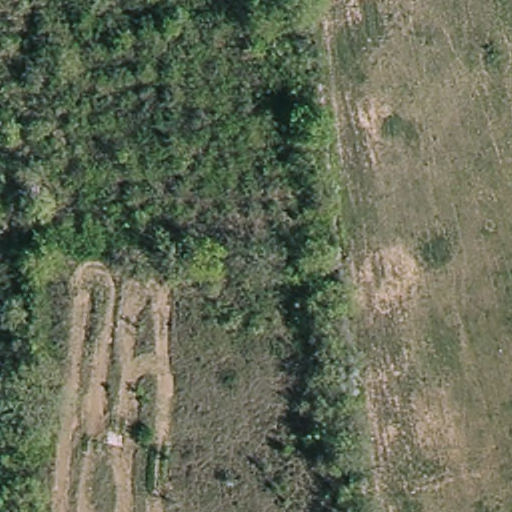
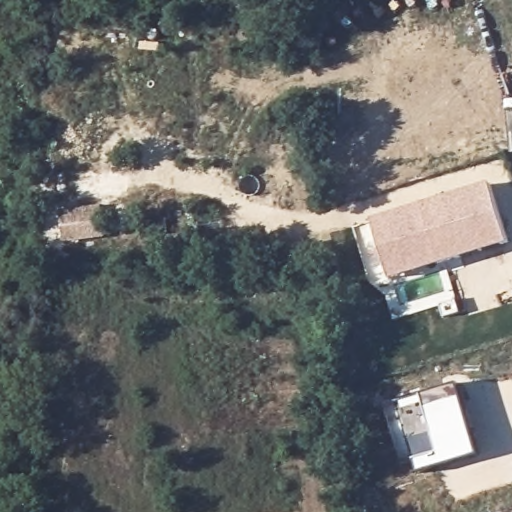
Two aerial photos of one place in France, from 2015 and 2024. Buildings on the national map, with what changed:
new [(392,275),(377,224),(495,189),(512,244),(512,246),(435,270),(395,282),(392,275)]
new [(102,207),(105,238),(63,242),(60,211),(102,207)]
new [(420,472),(418,460),(404,463),(384,405),(400,402),(458,384),(478,455),(420,472)]

